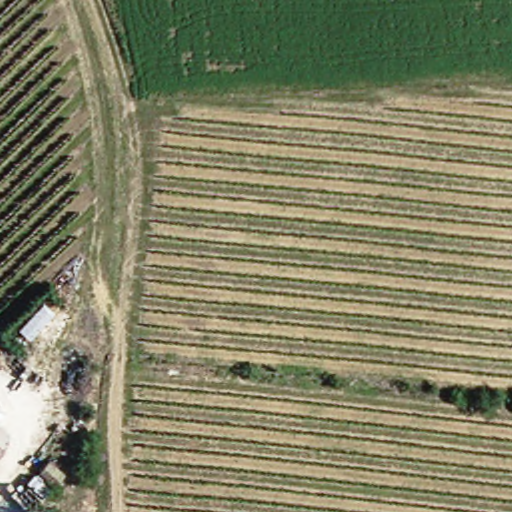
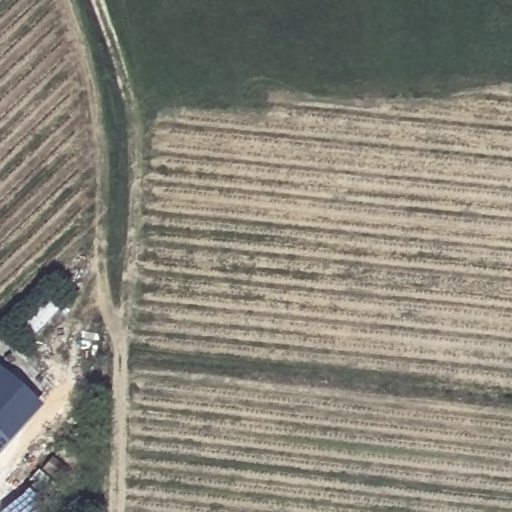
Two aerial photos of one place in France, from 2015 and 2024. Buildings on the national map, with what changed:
new [(0,373),(39,408),(3,446),(0,443),(0,373)]
unchanged [(0,449),(0,443),(3,446),(0,449)]

